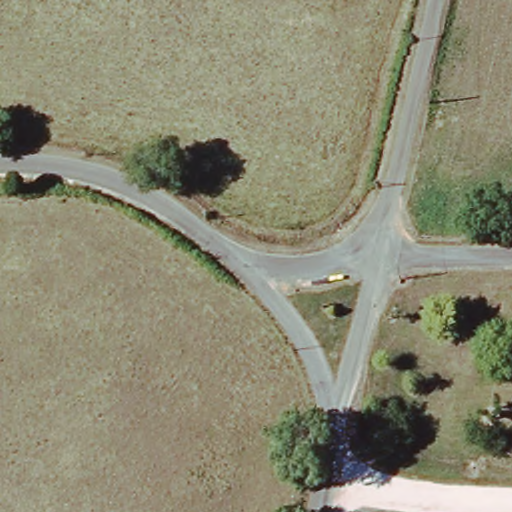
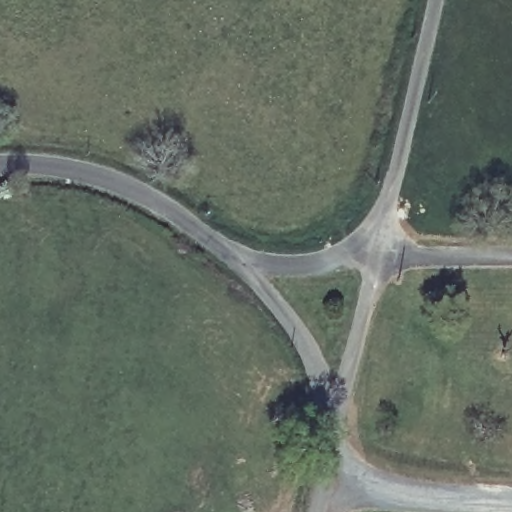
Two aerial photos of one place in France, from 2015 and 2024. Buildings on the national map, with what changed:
[]

